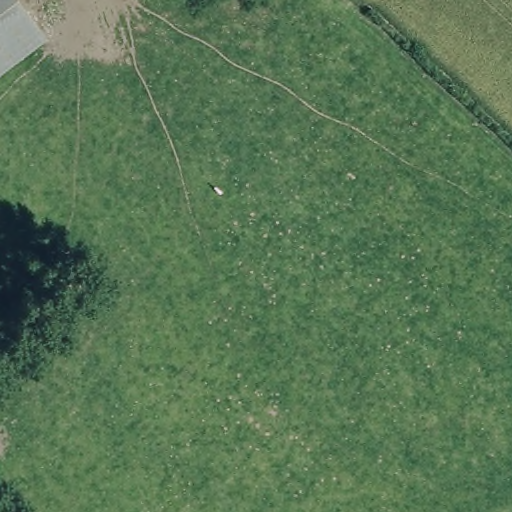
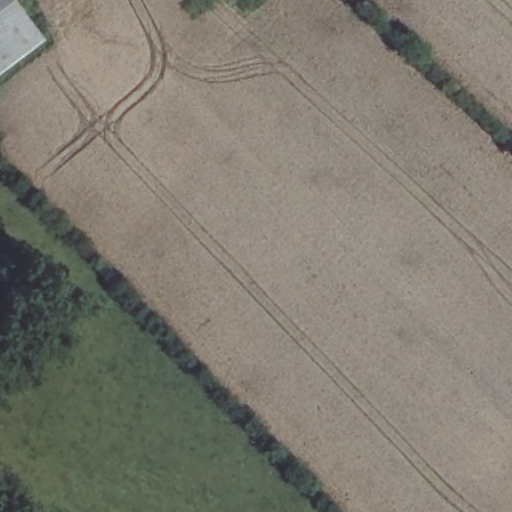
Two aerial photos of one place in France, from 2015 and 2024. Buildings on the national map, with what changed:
unchanged [(6,0),(12,0),(41,38),(0,69),(0,4),(6,0)]

